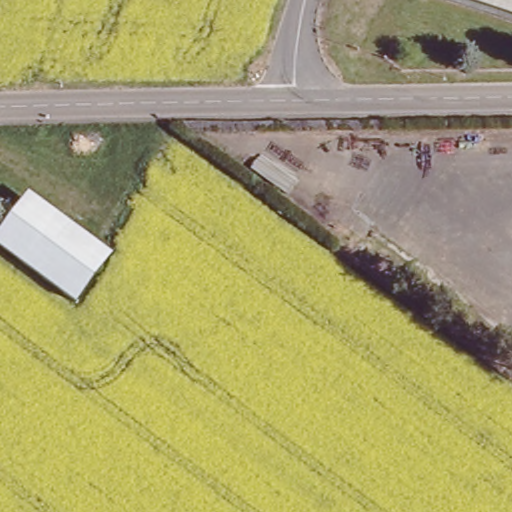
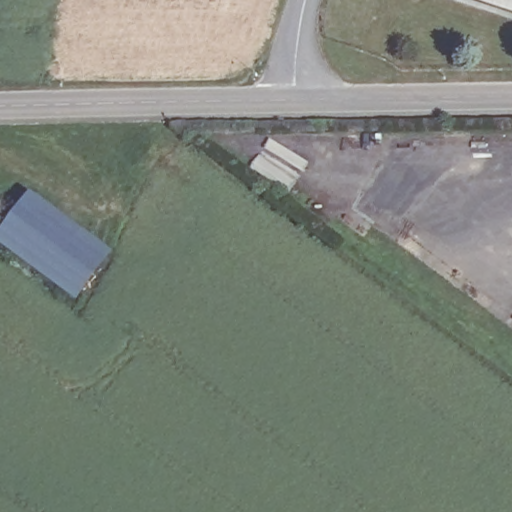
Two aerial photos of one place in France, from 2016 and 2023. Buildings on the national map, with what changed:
unchanged [(512,0),(512,16),(463,0),(512,0)]
unchanged [(37,192),(116,250),(79,298),(2,240),(37,192)]

